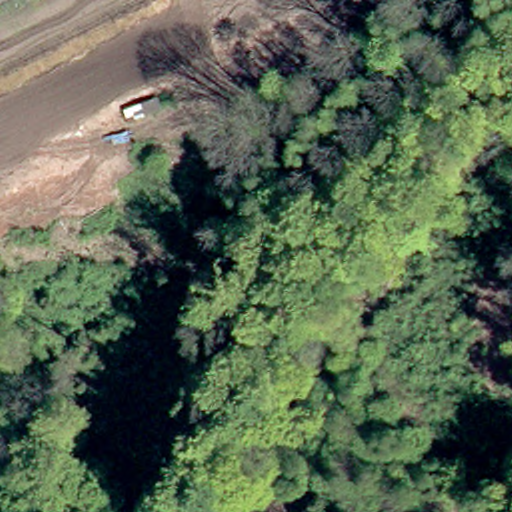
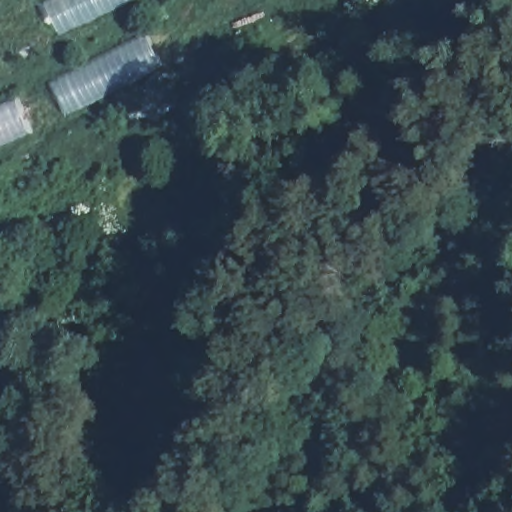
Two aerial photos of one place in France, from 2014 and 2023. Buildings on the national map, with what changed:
new [(122,0),(57,31),(45,2),(50,0),(122,0)]
new [(148,35),(162,63),(65,111),(52,81),(148,35)]
new [(17,102),(28,131),(0,141),(0,108),(17,102)]

